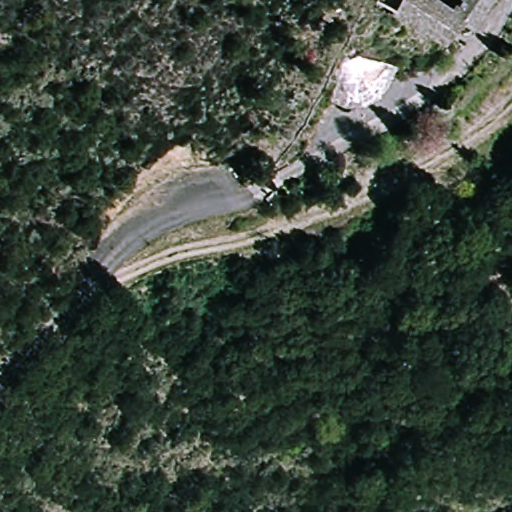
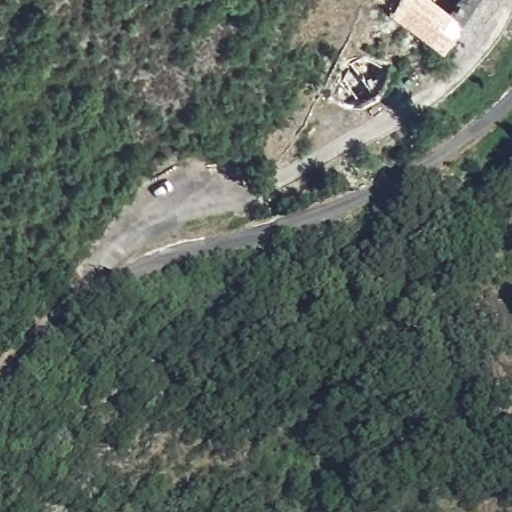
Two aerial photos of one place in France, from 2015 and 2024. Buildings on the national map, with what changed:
unchanged [(396,7),(400,0),(447,0),(457,6),(460,0),(494,0),(453,46),(396,7)]
unchanged [(379,96),(365,101),(352,102),(340,100),(345,59),(367,54),(401,62),(379,96)]

